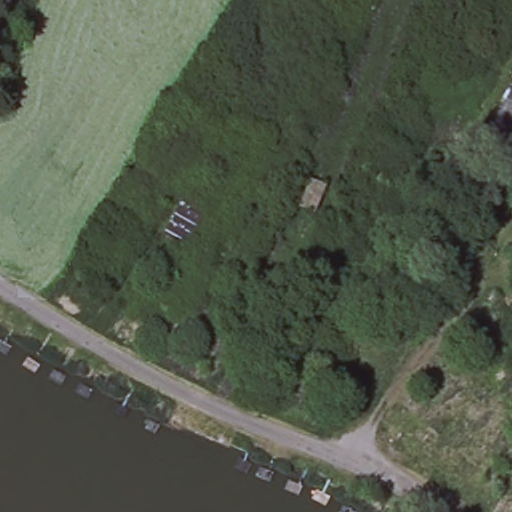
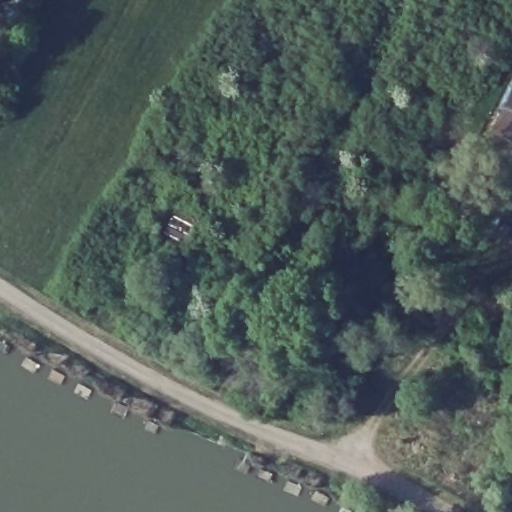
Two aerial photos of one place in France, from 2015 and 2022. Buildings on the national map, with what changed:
unchanged [(493,129),(512,91),(512,138),(493,129)]

